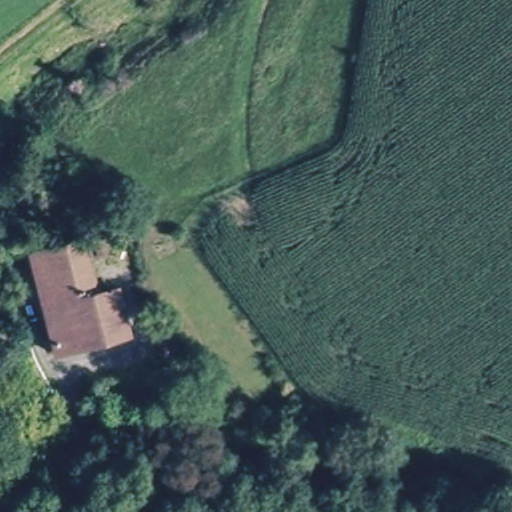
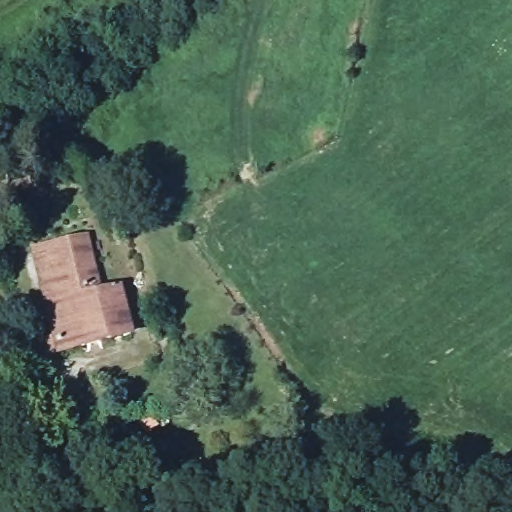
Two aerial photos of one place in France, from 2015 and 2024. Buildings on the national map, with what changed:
unchanged [(63,353),(27,257),(78,240),(97,290),(112,285),(127,329),(63,353)]

